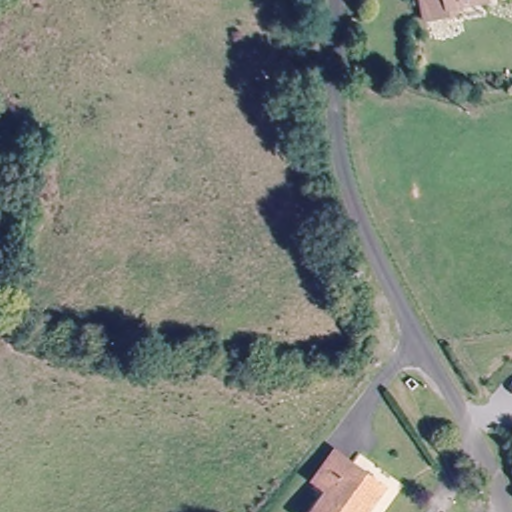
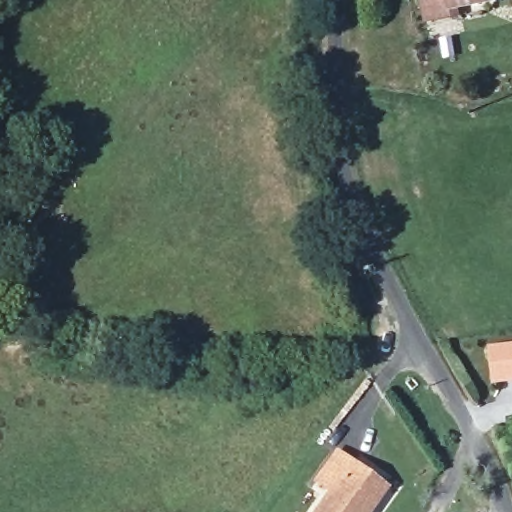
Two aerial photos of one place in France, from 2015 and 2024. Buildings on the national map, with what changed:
unchanged [(458,12),(431,18),(427,0),(455,0),(456,5),(458,12)]
unchanged [(484,0),(456,5),(455,0),(484,0)]
new [(512,382),(492,384),(488,344),(512,342),(512,382)]
unchanged [(325,493),(309,480),(333,449),(349,461),(343,468),(377,495),(364,512),(310,512),(325,493)]

